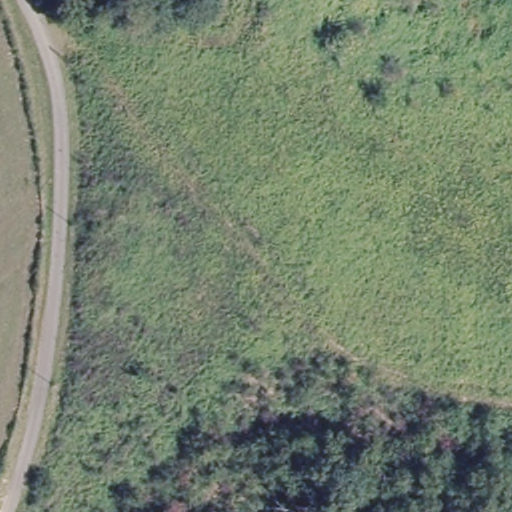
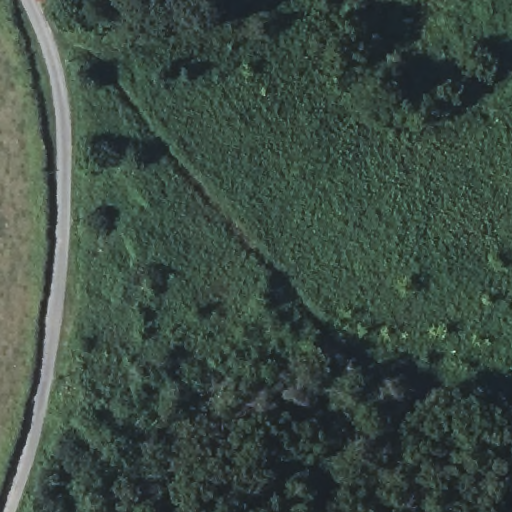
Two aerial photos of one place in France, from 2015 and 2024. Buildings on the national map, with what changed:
[]

